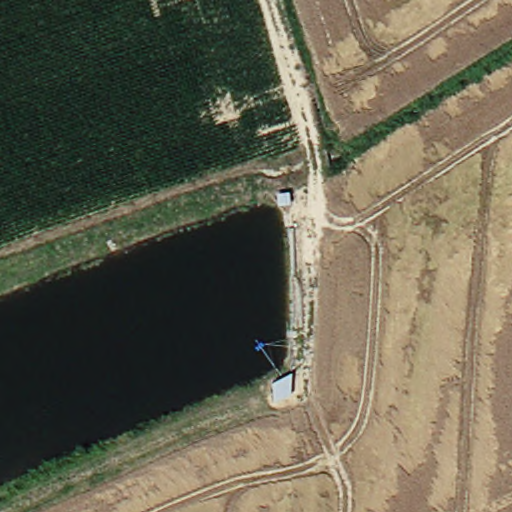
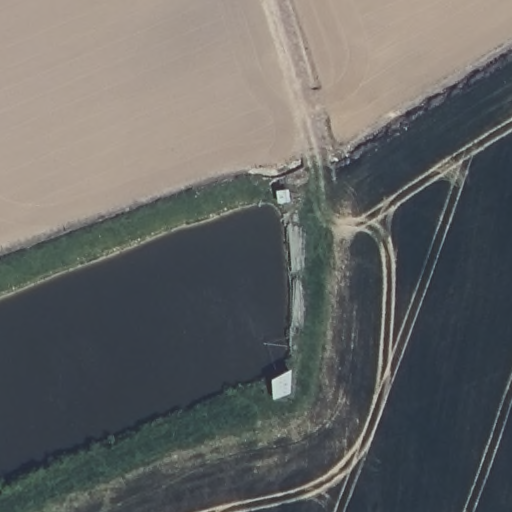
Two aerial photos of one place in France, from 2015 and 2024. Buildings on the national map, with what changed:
[]

